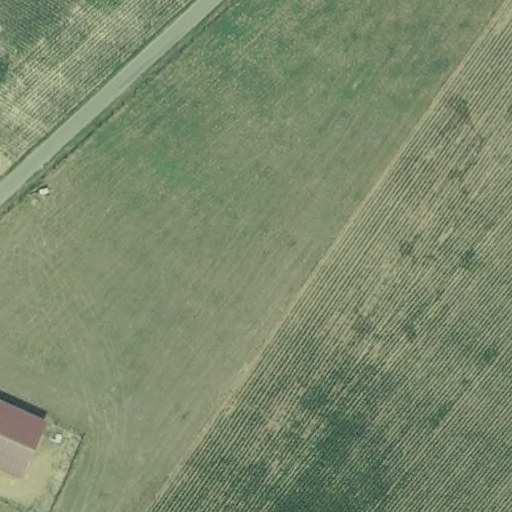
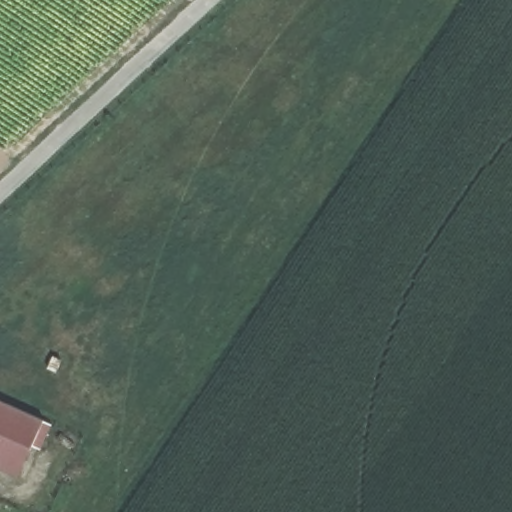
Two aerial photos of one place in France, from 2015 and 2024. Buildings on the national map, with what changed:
unchanged [(16,474),(0,467),(0,398),(42,416),(16,474)]

